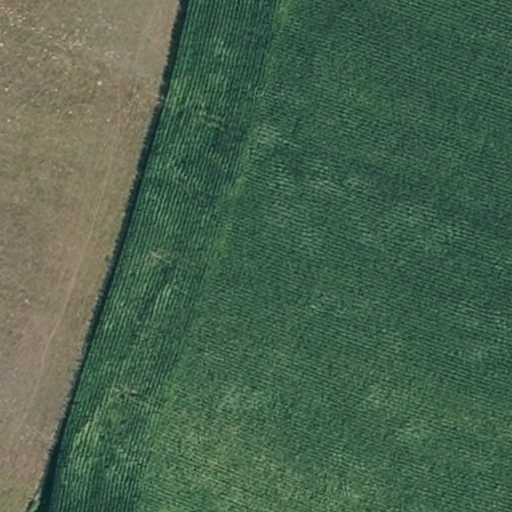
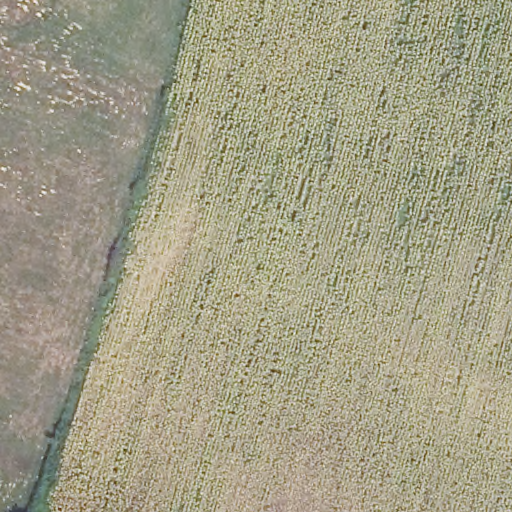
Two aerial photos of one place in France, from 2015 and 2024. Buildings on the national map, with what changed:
[]

